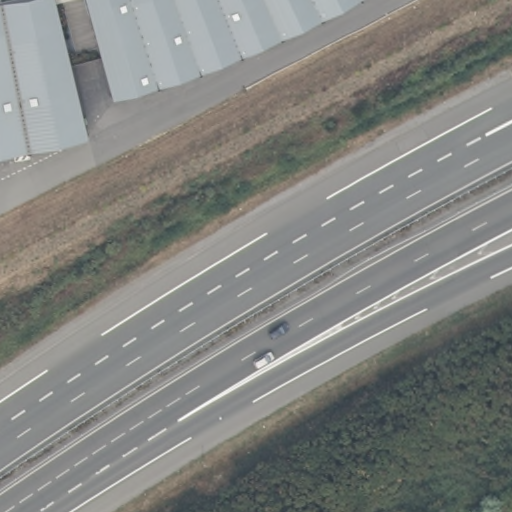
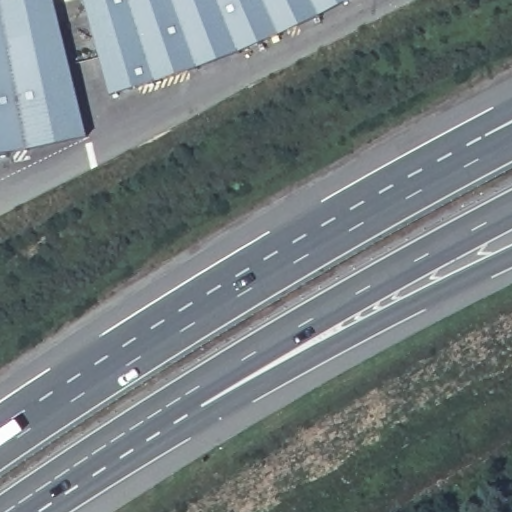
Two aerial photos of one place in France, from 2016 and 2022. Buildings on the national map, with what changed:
unchanged [(53,0),(92,137),(0,151),(0,0),(53,0)]
unchanged [(110,100),(82,0),(349,0),(321,16),(110,100)]

